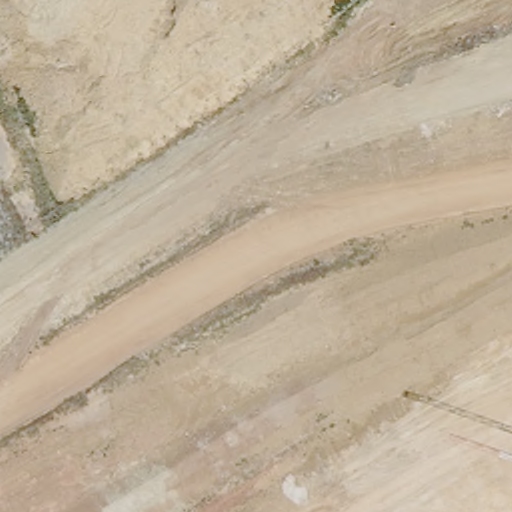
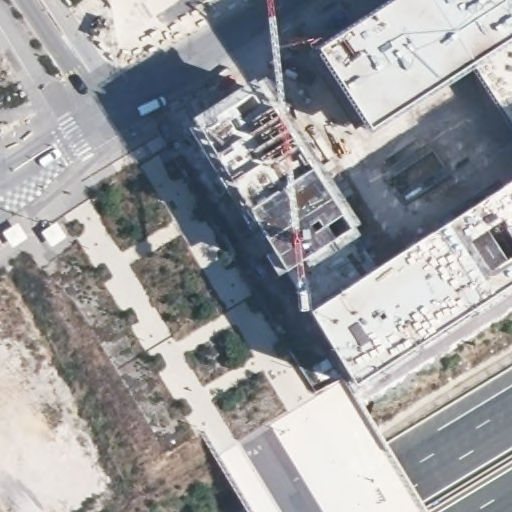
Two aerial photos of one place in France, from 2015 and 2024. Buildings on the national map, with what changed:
new [(512,0),(512,45),(474,68),(370,133),(316,50),(392,0),(512,0)]
new [(474,68),(512,45),(512,125),(474,68)]
new [(249,84),(262,80),(272,96),(301,147),(323,179),(340,197),(357,226),(355,227),(360,236),(347,245),(343,239),(285,273),(247,212),(221,180),(185,124),(249,84)]
new [(355,386),(347,371),(312,315),(285,273),(343,239),(347,245),(355,240),(376,270),(512,182),(512,286),(355,386)]
new [(215,451),(347,371),(431,512),(251,512),(215,451)]

